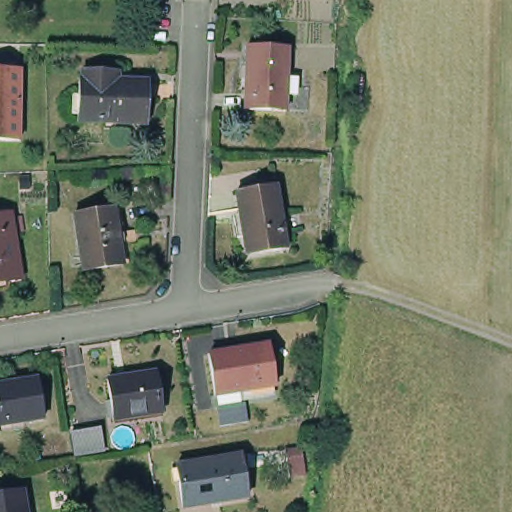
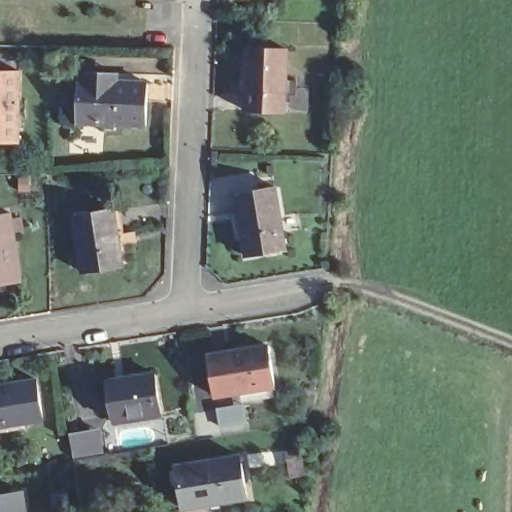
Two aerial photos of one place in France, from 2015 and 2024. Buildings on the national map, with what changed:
unchanged [(280,45),(276,108),(235,106),(239,43),(280,45)]
unchanged [(10,133),(0,133),(0,61),(12,61),(10,133)]
unchanged [(70,120),(72,76),(75,76),(76,67),(111,70),(110,78),(141,80),(138,124),(70,120)]
unchanged [(267,183),(277,245),(237,251),(227,190),(267,183)]
unchanged [(109,262),(70,268),(60,213),(100,206),(109,262)]
unchanged [(0,210),(7,209),(8,217),(18,215),(20,229),(10,230),(18,278),(0,281),(0,210)]
unchanged [(211,388),(205,348),(265,339),(271,379),(267,380),(268,385),(238,390),(237,385),(211,388)]
unchanged [(105,380),(152,371),(159,411),(111,420),(105,380)]
unchanged [(0,380),(28,375),(35,415),(0,421),(0,380)]
unchanged [(71,453),(68,430),(77,428),(81,451),(71,453)]
unchanged [(240,492),(175,504),(168,461),(231,450),(240,492)]
unchanged [(20,512),(0,512),(0,486),(15,484),(20,512)]

